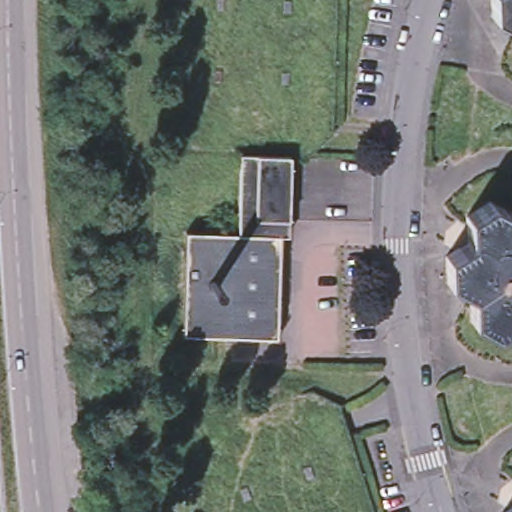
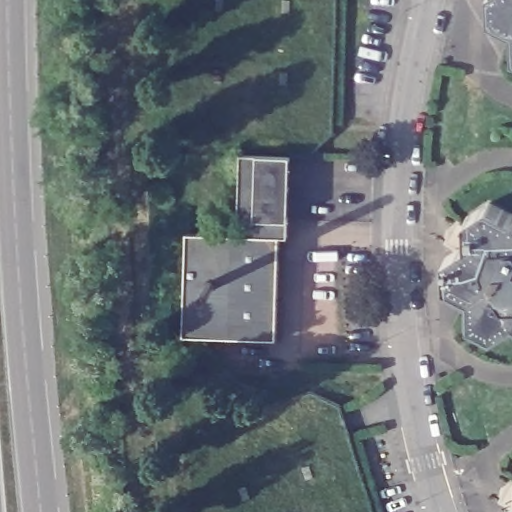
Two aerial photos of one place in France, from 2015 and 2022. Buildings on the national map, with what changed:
unchanged [(486,0),(512,0),(512,32),(488,22),(486,0)]
unchanged [(182,334),(184,233),(236,234),(238,154),(289,155),(287,236),(279,237),(275,337),(182,334)]
unchanged [(474,329),(471,302),(443,291),(440,267),(463,248),(459,221),(479,204),(504,214),(512,208),(512,328),(497,339),(474,329)]

